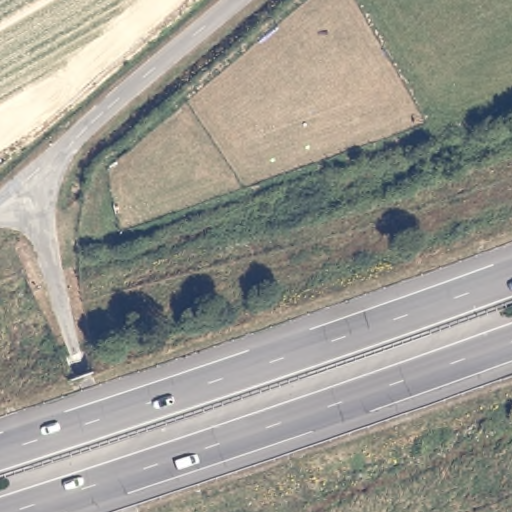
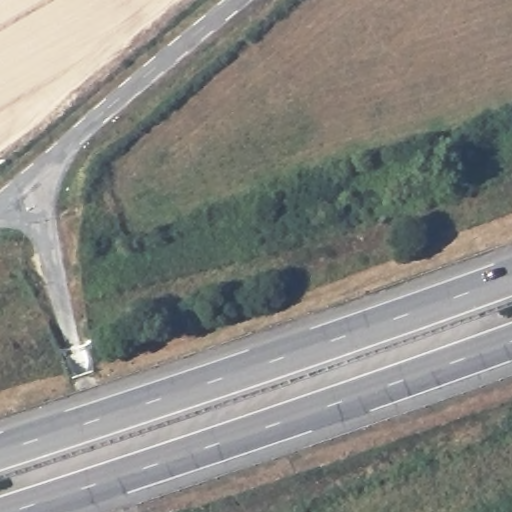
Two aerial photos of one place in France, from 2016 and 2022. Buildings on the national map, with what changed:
[]

